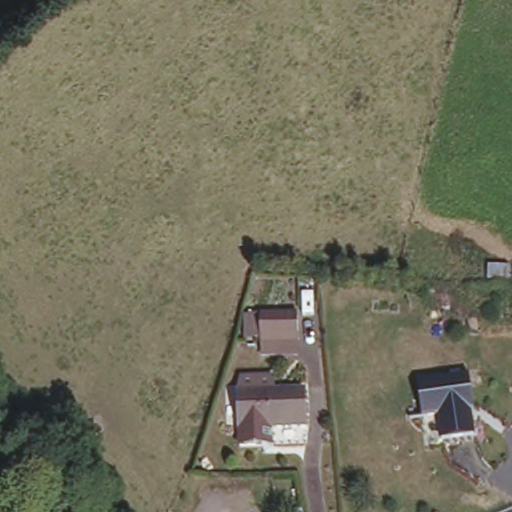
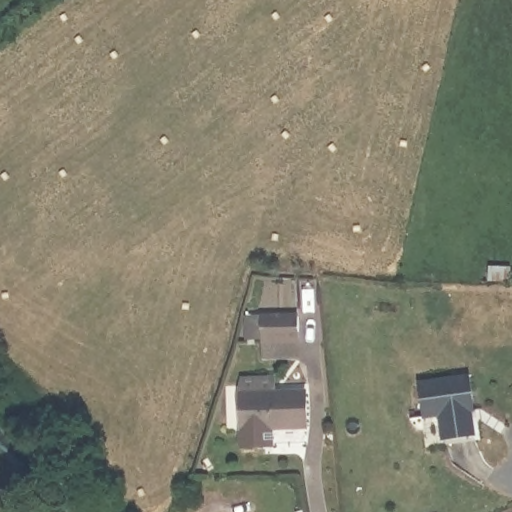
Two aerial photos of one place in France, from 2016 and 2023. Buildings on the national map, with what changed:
unchanged [(263,330),(263,314),(303,314),(303,342),(268,342),(268,330),(263,330)]
unchanged [(478,434),(451,438),(447,415),(431,417),(427,383),(475,376),(480,410),(475,410),(478,434)]
unchanged [(246,393),(311,392),(312,428),(246,429),(246,393)]

